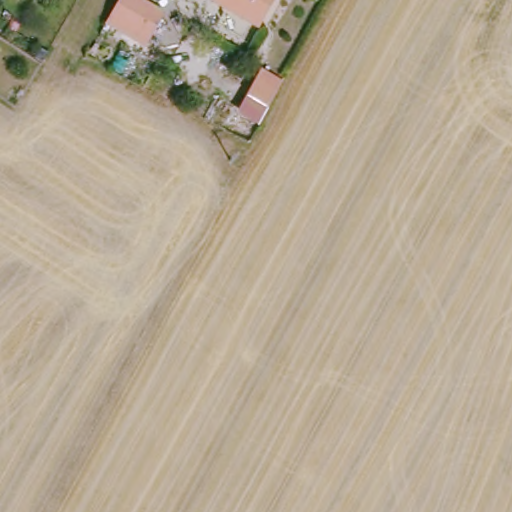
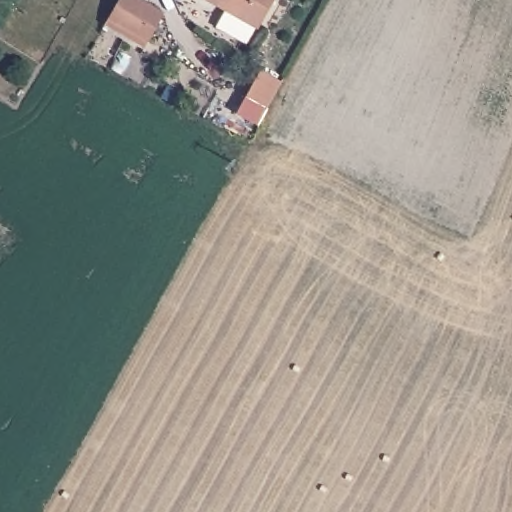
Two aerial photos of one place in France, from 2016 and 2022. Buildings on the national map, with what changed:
unchanged [(120,0),(137,0),(163,14),(149,41),(108,20),(120,0)]
unchanged [(274,0),(258,26),(211,0),(274,0)]
unchanged [(273,108),(252,96),(266,70),(287,81),(273,108)]

